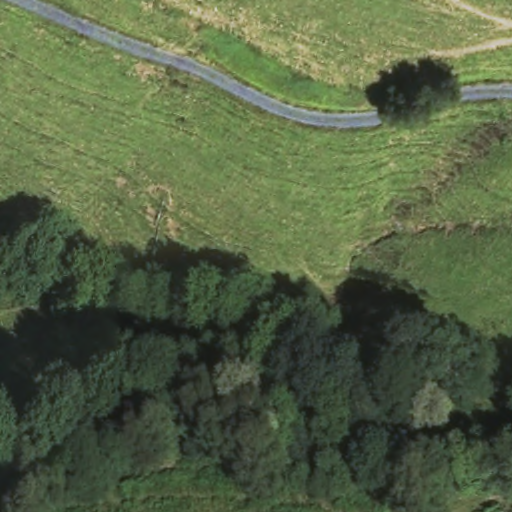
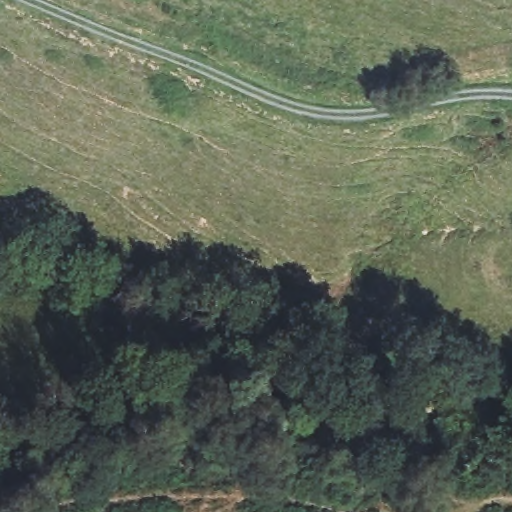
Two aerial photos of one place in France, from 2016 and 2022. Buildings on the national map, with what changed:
[]

